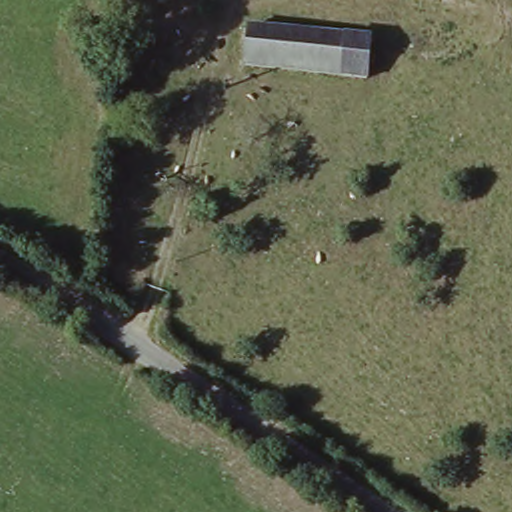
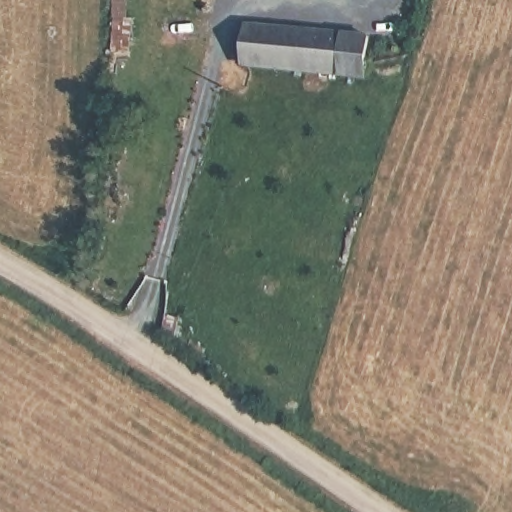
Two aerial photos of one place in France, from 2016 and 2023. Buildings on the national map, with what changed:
unchanged [(368,78),(242,64),(246,26),(372,39),(368,78)]

